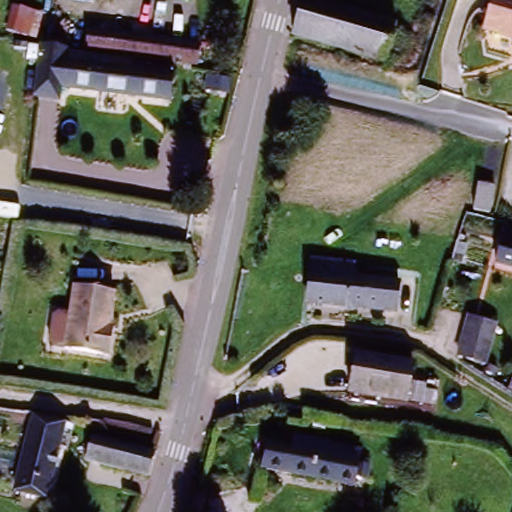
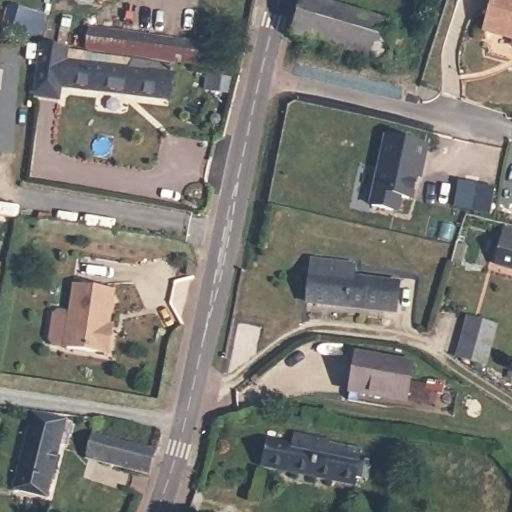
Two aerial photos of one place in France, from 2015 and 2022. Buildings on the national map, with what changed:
unchanged [(492,0),(512,0),(512,38),(486,32),(492,0)]
unchanged [(304,1),(399,24),(392,57),(295,34),(304,1)]
unchanged [(199,67),(173,66),(85,56),(89,30),(201,42),(199,67)]
unchanged [(60,104),(37,100),(45,49),(85,56),(173,66),(175,103),(62,89),(60,104)]
new [(382,136),(422,147),(417,163),(414,162),(405,199),(393,196),(390,212),(364,205),(382,136)]
unchanged [(497,189),(492,217),(472,214),(477,185),(497,189)]
unchanged [(497,268),(505,233),(512,235),(512,272),(497,268)]
unchanged [(385,313),(308,306),(310,273),(312,262),(352,266),(352,278),(388,282),(385,313)]
unchanged [(112,289),(107,329),(110,330),(108,352),(64,347),(72,285),(112,289)]
unchanged [(497,327),(488,373),(455,355),(463,321),(497,327)]
unchanged [(353,357),(405,361),(401,400),(350,395),(353,357)]
unchanged [(39,414),(70,422),(52,495),(20,487),(39,414)]
unchanged [(97,435),(157,448),(150,477),(90,462),(97,435)]
unchanged [(257,439),(360,454),(357,481),(253,467),(257,439)]

